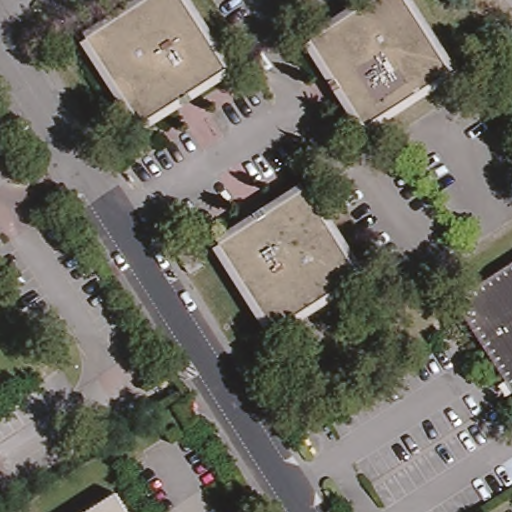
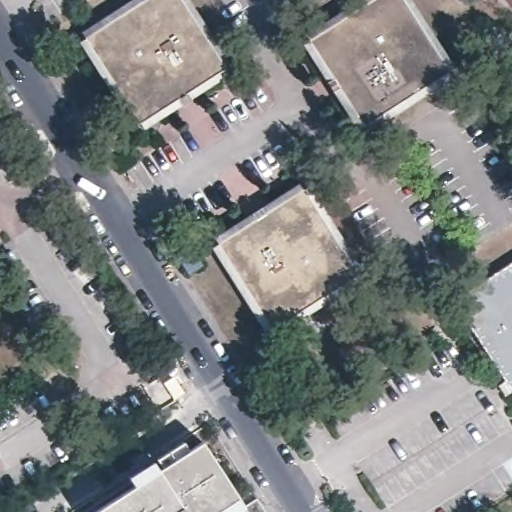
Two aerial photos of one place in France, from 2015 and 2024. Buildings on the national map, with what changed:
unchanged [(94,34),(147,0),(190,0),(202,16),(232,65),(148,118),(94,34)]
unchanged [(297,48),(372,0),(389,0),(324,41),(377,125),(359,136),(297,48)]
unchanged [(324,41),(389,0),(414,0),(460,74),(377,125),(324,41)]
unchanged [(135,126),(78,46),(94,34),(148,118),(135,126)]
unchanged [(304,184),(362,270),(343,282),(290,197),(304,184)]
unchanged [(343,282),(260,334),(207,249),(290,197),(343,282)]
unchanged [(194,255),(205,273),(192,281),(181,264),(194,255)]
unchanged [(512,262),(512,384),(457,298),(512,262)]
demolished [(195,419),(185,426),(174,408),(183,402),(195,419)]
new [(134,485),(127,476),(152,460),(183,443),(189,450),(203,442),(246,506),(236,512),(214,512),(92,512),(134,485)]
demolished [(136,512),(88,512),(122,491),(136,512)]

